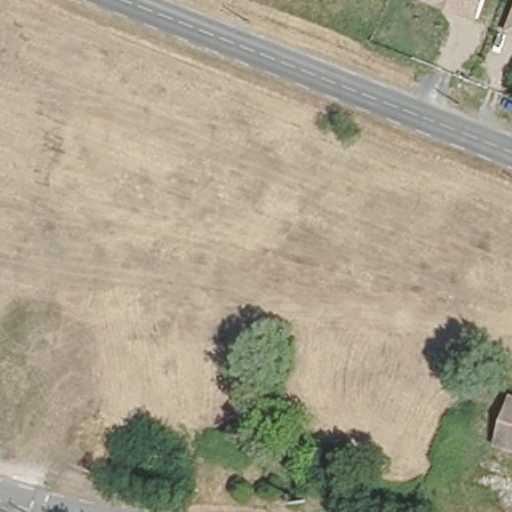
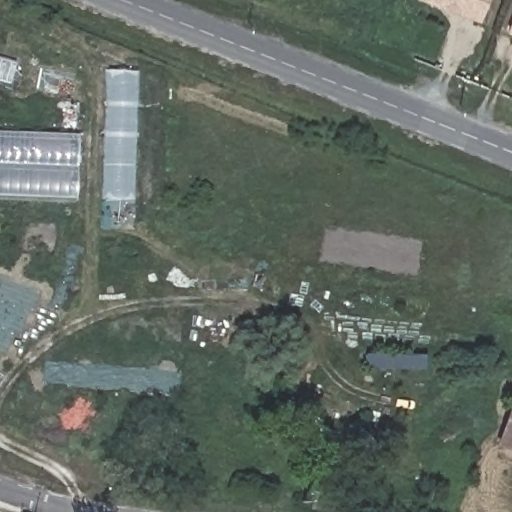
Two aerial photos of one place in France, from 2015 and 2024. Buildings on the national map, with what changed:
unchanged [(425,0),(486,0),(479,19),(425,0)]
unchanged [(506,32),(512,14),(512,34),(506,32)]
new [(104,71),(140,72),(135,202),(100,202),(104,71)]
new [(0,195),(0,131),(79,135),(76,198),(0,195)]
unchanged [(500,445),(512,406),(512,448),(500,445)]

